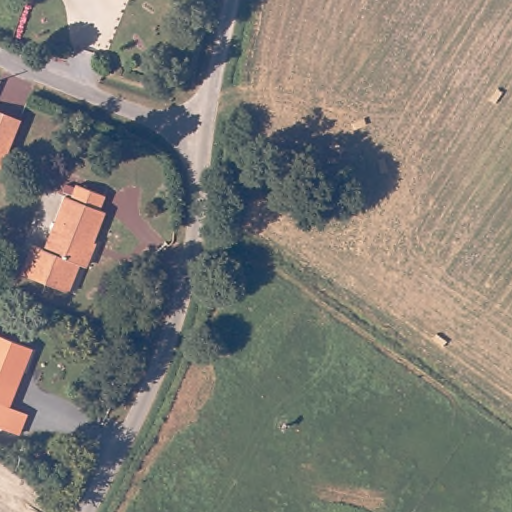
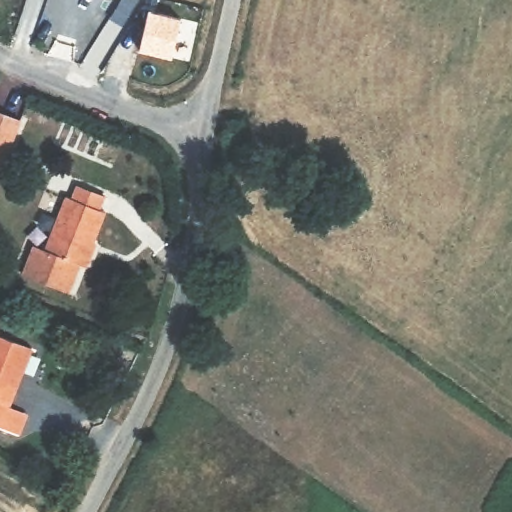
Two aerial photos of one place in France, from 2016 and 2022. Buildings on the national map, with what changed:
new [(147,10),(180,16),(171,57),(139,50),(147,10)]
unchanged [(0,168),(0,115),(17,121),(0,168)]
unchanged [(35,244),(46,248),(66,194),(72,196),(77,183),(105,194),(100,208),(105,210),(85,264),(81,263),(71,290),(24,273),(35,244)]
unchanged [(2,423),(0,422),(0,331),(35,344),(16,402),(34,408),(25,431),(2,423)]

